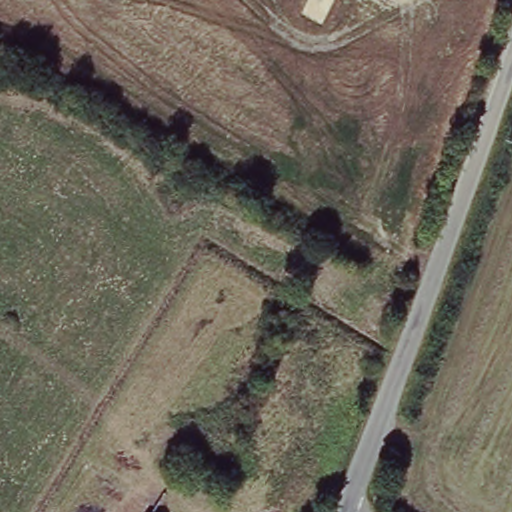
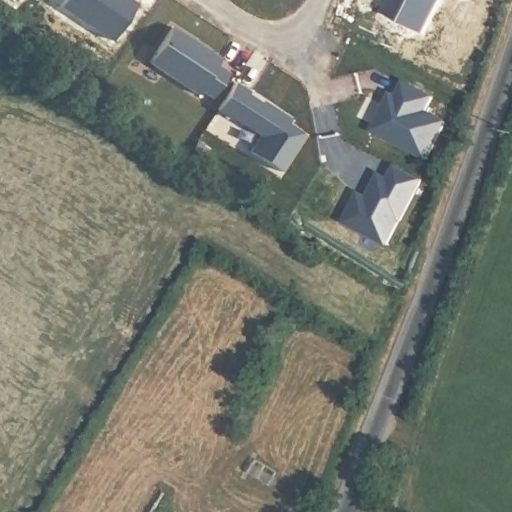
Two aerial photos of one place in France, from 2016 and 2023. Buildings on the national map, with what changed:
new [(425,32),(386,12),(392,0),(441,0),(425,32)]
new [(216,54),(230,75),(215,104),(147,61),(169,26),(216,54)]
new [(252,153),(262,139),(217,111),(234,84),(251,94),(250,97),(262,106),(264,102),(292,122),(290,126),(306,137),(282,174),(252,153)]
new [(377,132),(392,104),(397,107),(409,84),(439,100),(432,114),(452,124),(433,162),(377,132)]
new [(361,193),(370,197),(381,175),(390,180),(397,166),(422,179),(402,219),(401,219),(389,242),(347,222),(361,193)]

